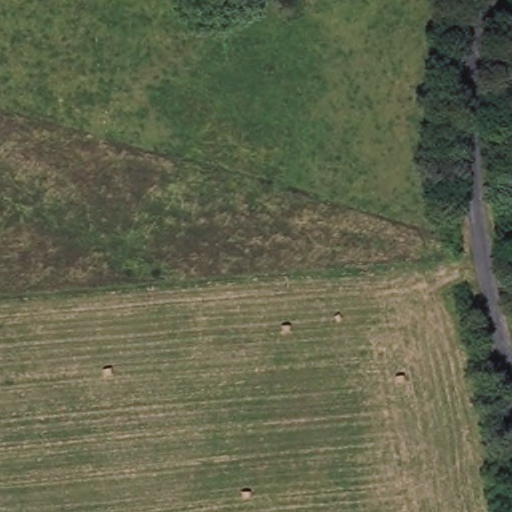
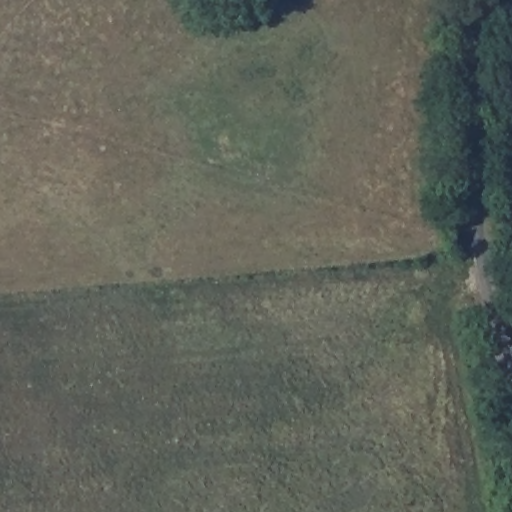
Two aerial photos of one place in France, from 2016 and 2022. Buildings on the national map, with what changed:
[]

